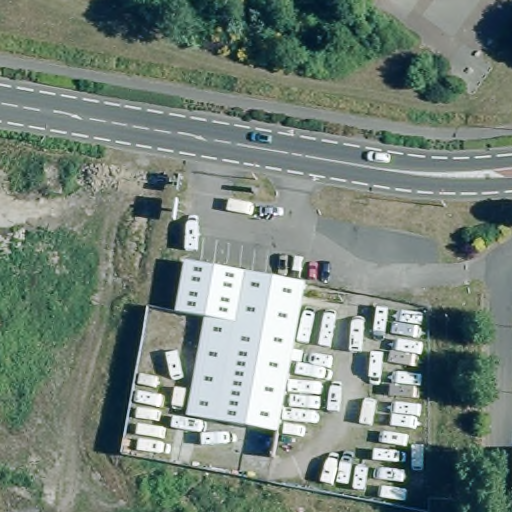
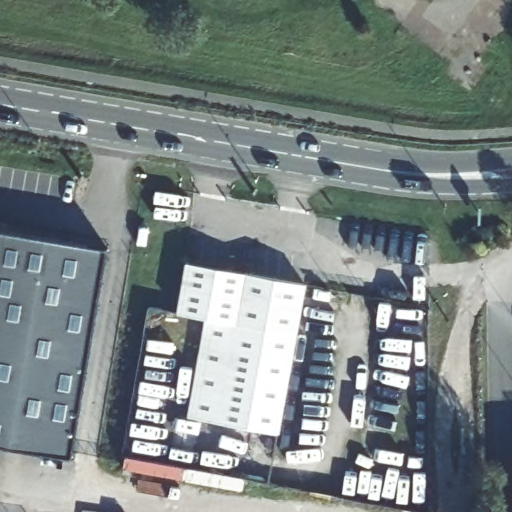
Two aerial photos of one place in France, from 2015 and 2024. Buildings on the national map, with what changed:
new [(72,459),(0,447),(0,230),(109,248),(72,459)]
unchanged [(303,285),(276,433),(187,415),(206,320),(177,314),(186,264),(303,285)]

